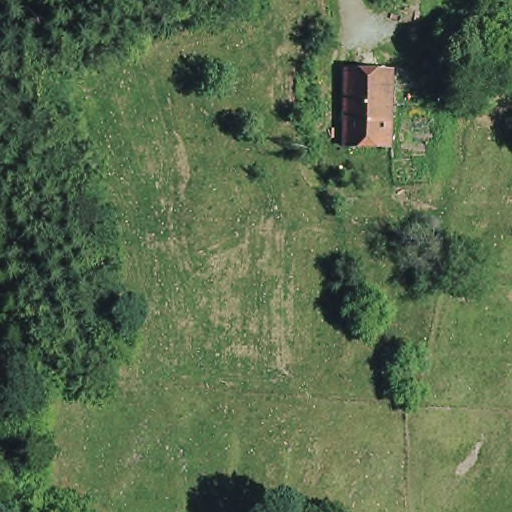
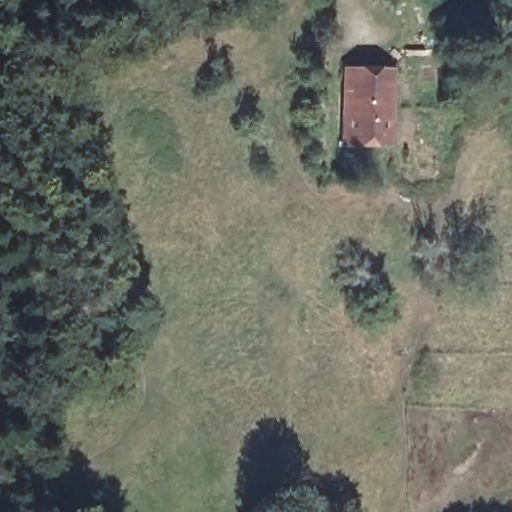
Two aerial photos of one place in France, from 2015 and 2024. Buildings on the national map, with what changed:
unchanged [(346,147),(347,70),(371,69),(371,57),(391,58),(392,69),(389,148),(346,147)]

